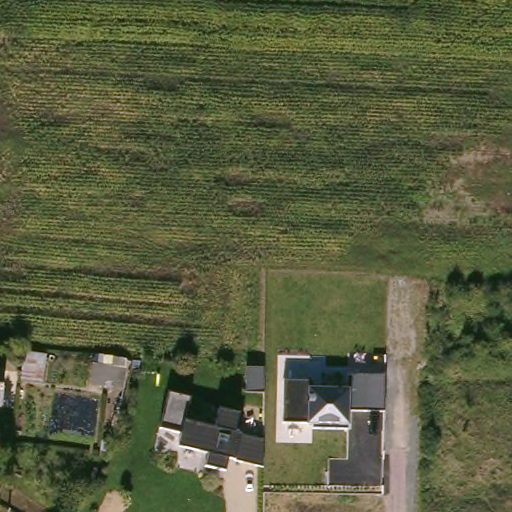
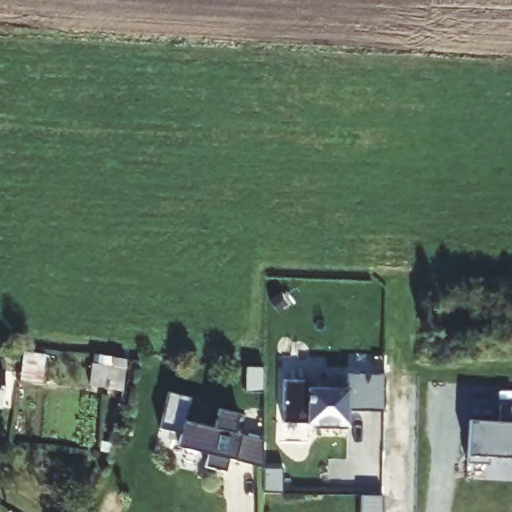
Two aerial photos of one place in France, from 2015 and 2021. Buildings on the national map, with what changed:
unchanged [(92,364),(105,364),(105,386),(92,386),(92,364)]
unchanged [(4,406),(0,406),(0,370),(5,370),(4,406)]
unchanged [(310,381),(310,387),(345,388),(346,374),(385,377),(383,413),(348,411),(347,427),(306,427),(306,423),(281,424),(282,380),(310,381)]
unchanged [(263,458),(234,453),(231,466),(210,462),(213,446),(182,440),(185,430),(163,426),(170,388),(194,393),(189,417),(217,422),(221,403),(242,406),(239,425),(263,430),(263,458)]
new [(471,421),(500,423),(501,407),(512,408),(512,459),(491,458),(490,465),(468,464),(471,421)]
new [(385,496),(384,512),(362,512),(362,495),(370,496),(385,496)]

